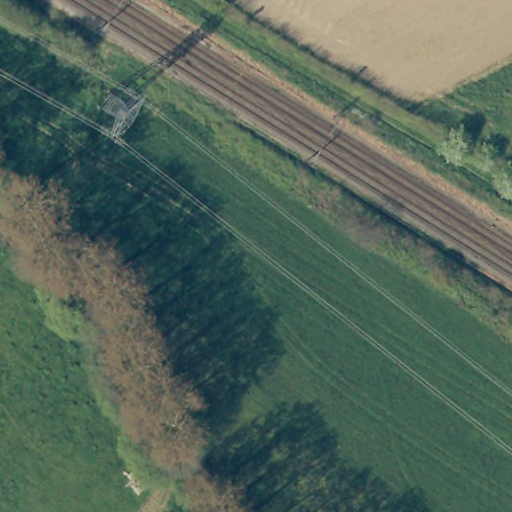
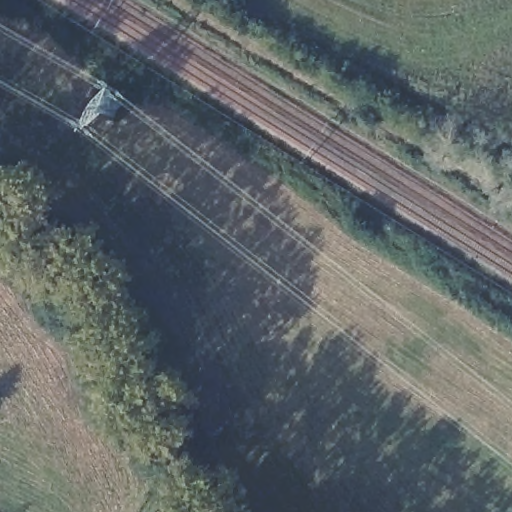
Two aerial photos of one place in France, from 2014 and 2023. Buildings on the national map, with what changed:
[]

